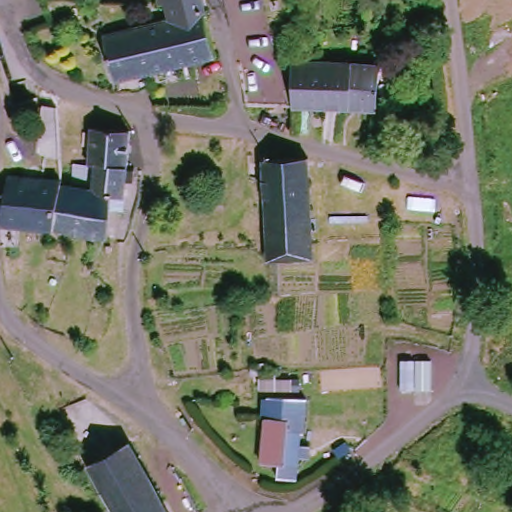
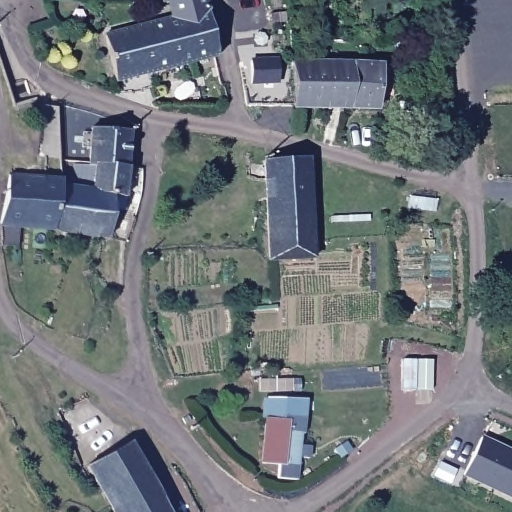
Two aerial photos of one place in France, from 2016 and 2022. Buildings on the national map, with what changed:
unchanged [(164,4),(156,6),(154,0),(199,0),(211,56),(147,72),(132,26),(152,21),(167,17),(164,4)]
unchanged [(111,80),(100,37),(132,26),(147,72),(111,80)]
unchanged [(292,100),(295,55),(304,56),(382,66),(376,109),(292,100)]
unchanged [(83,162),(87,124),(129,127),(126,165),(83,162)]
unchanged [(259,175),(241,175),(241,153),(257,151),(259,157),(304,156),(309,253),(262,255),(259,175)]
unchanged [(83,162),(126,165),(125,172),(133,172),(132,182),(125,182),(123,206),(109,205),(106,231),(69,227),(65,237),(46,235),(48,226),(57,183),(65,184),(67,161),(83,162)]
unchanged [(57,183),(48,226),(0,221),(0,172),(58,176),(57,183)]
unchanged [(417,356),(412,386),(400,384),(405,355),(417,356)]
unchanged [(430,389),(419,387),(415,386),(419,357),(435,360),(432,377),(430,389)]
unchanged [(286,400),(287,401),(287,415),(272,415),(272,403),(271,400),(286,400)]
unchanged [(270,401),(270,403),(271,416),(256,417),(255,405),(255,402),(270,401)]
unchanged [(310,468),(311,479),(300,480),(300,501),(283,502),(282,488),(266,489),(264,445),(262,427),(262,424),(302,422),(302,427),(303,443),(304,455),(301,455),(302,468),(310,468)]
unchanged [(173,512),(117,512),(91,460),(136,437),(173,512)]
new [(485,437),(512,450),(512,495),(467,473),(485,437)]

